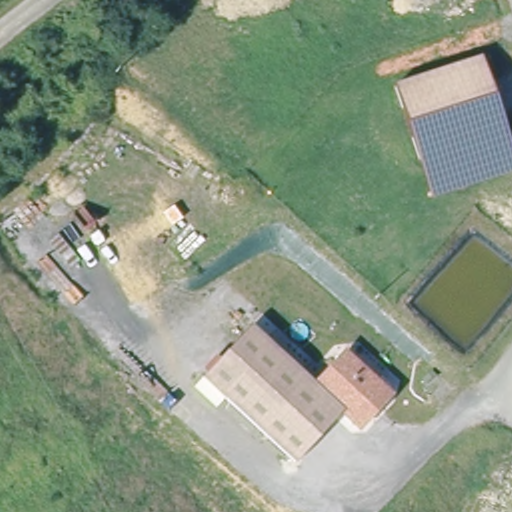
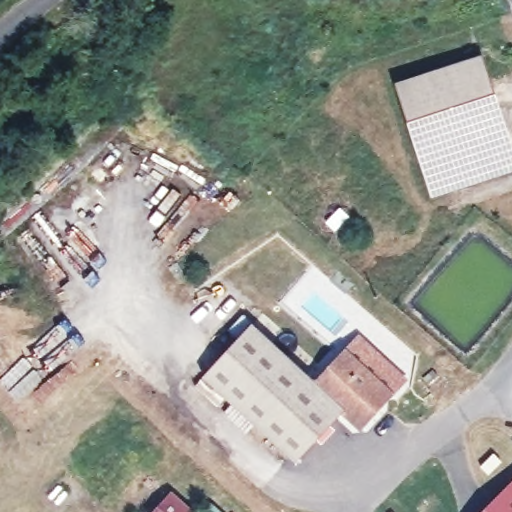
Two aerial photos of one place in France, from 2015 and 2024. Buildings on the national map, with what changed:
unchanged [(423,164),(398,86),(486,59),(511,136),(423,164)]
unchanged [(512,172),(434,197),(423,164),(511,136),(512,138),(512,172)]
unchanged [(390,395),(361,426),(345,413),(298,463),(206,379),(252,326),(319,387),(347,356),(390,395)]
unchanged [(429,376),(434,382),(425,390),(419,383),(429,376)]
new [(512,484),(512,512),(483,512),(512,484)]
new [(173,493),(194,512),(155,512),(173,493)]

